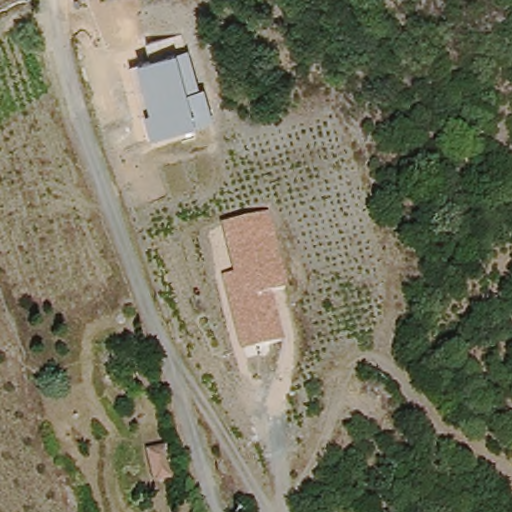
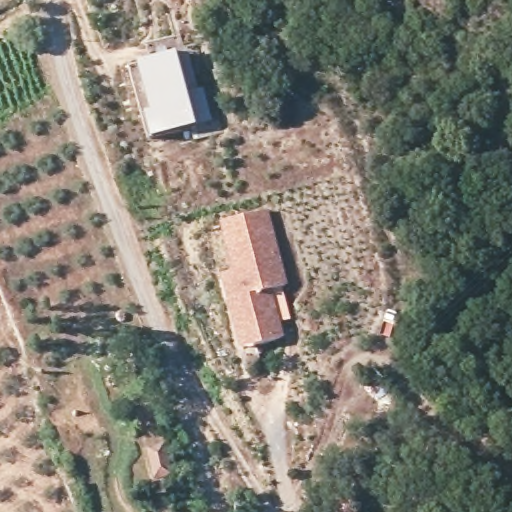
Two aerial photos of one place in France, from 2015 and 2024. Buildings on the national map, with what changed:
unchanged [(130,68),(138,65),(150,60),(146,44),(181,35),(188,50),(199,90),(203,90),(212,122),(195,127),(151,139),(148,138),(130,68)]
unchanged [(222,275),(233,272),(221,224),(269,211),(289,286),(271,290),(284,338),(241,350),(222,275)]
unchanged [(170,443),(177,476),(156,480),(148,447),(170,443)]

